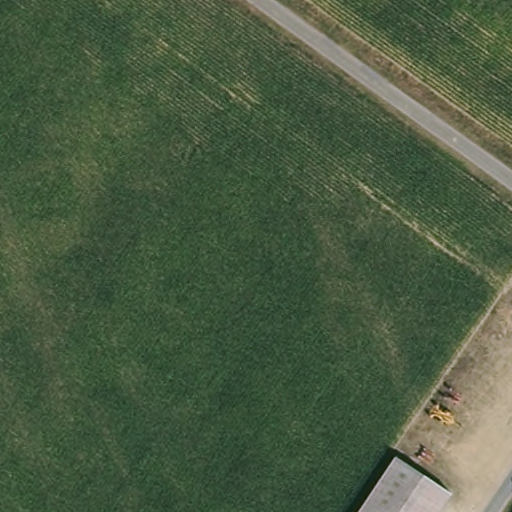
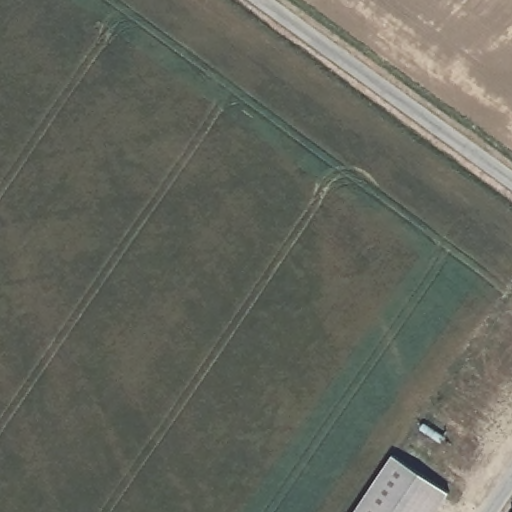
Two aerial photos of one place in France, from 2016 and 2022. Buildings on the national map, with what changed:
unchanged [(450,495),(439,512),(356,512),(393,455),(450,495)]

